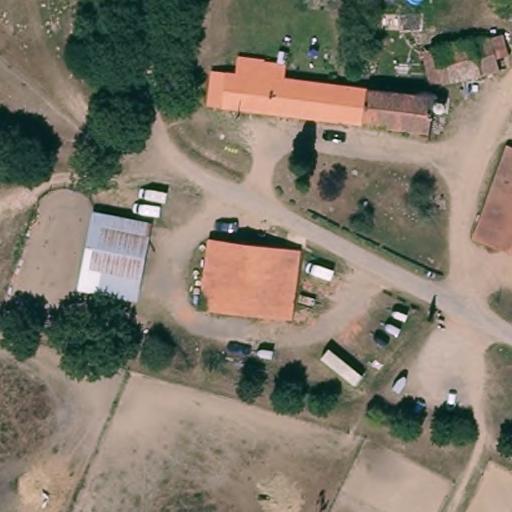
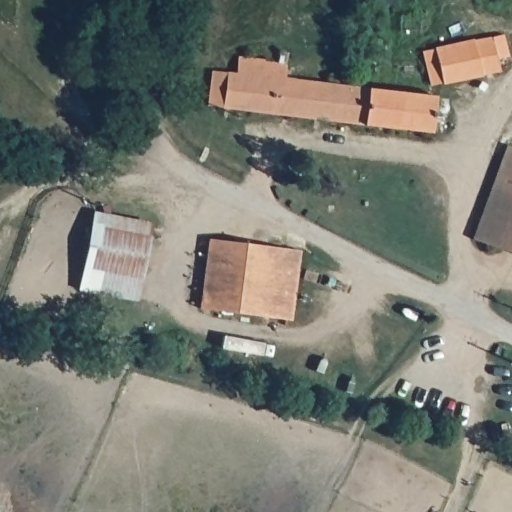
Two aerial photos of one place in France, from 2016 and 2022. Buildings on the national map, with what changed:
unchanged [(473,48),(477,41),(483,39),(488,41),(492,48),(508,49),(508,68),(493,68),(492,82),(428,80),(428,67),(430,47),(473,48)]
unchanged [(261,42),(260,57),(313,64),(311,82),(389,90),(385,127),(232,111),(239,41),(261,42)]
unchanged [(452,96),(448,133),(385,127),(389,90),(452,96)]
unchanged [(512,251),(480,242),(510,147),(512,148),(512,251)]
unchanged [(139,301),(81,292),(95,212),(155,223),(139,301)]
unchanged [(242,240),(306,246),(296,317),(204,308),(205,301),(192,298),(195,281),(189,280),(192,247),(214,249),(216,238),(242,240)]

